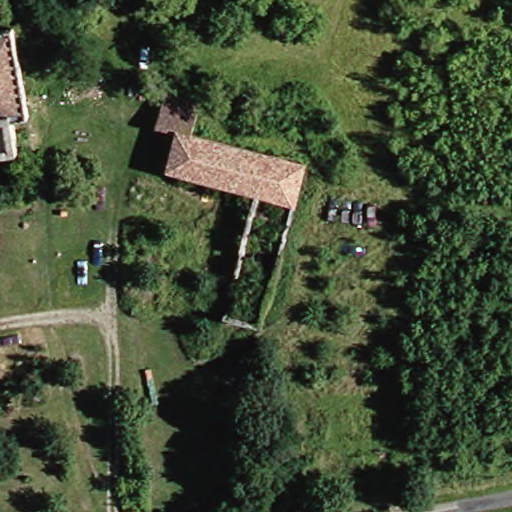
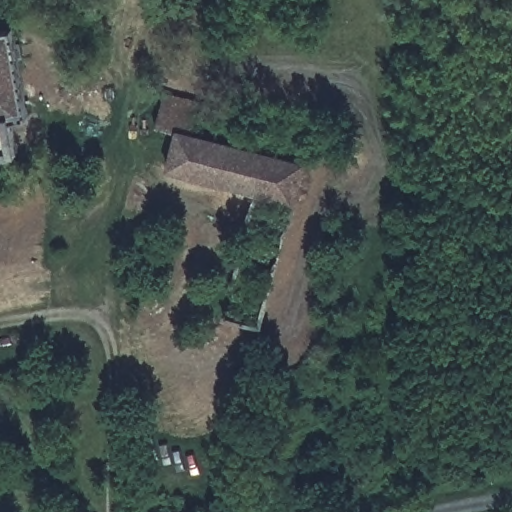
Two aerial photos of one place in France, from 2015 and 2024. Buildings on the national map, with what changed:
unchanged [(14,29),(30,116),(15,119),(19,154),(0,157),(0,32),(14,29)]
unchanged [(303,203),(260,194),(172,172),(182,133),(163,124),(173,92),(204,103),(198,130),(312,161),(303,203)]

